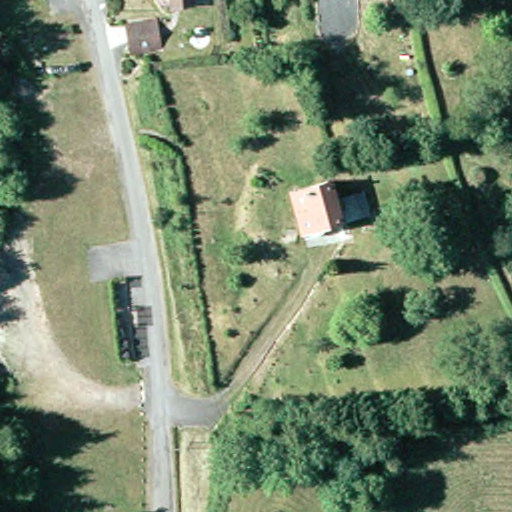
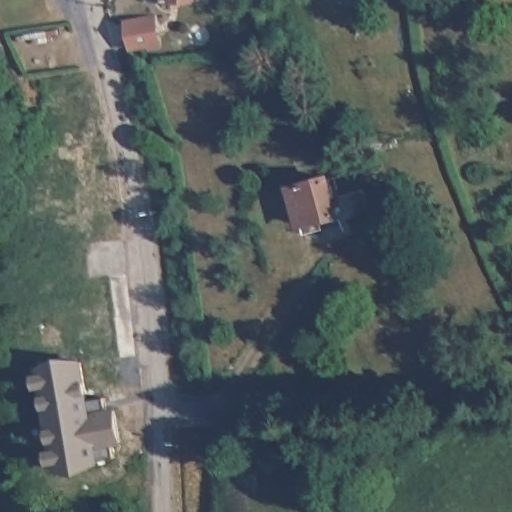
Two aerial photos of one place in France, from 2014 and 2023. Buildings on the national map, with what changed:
unchanged [(147,16),(152,44),(125,48),(121,21),(147,16)]
unchanged [(324,173),(332,210),(307,215),(294,217),(286,181),(297,178),(324,173)]
new [(106,404),(115,403),(120,442),(112,443),(114,454),(100,456),(100,463),(55,468),(39,365),(86,358),(91,395),(105,395),(106,404)]

